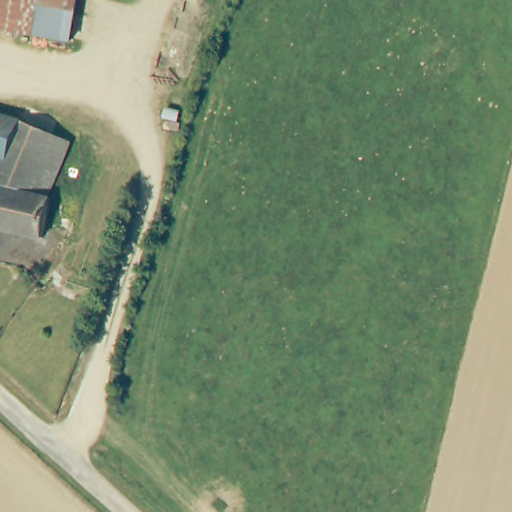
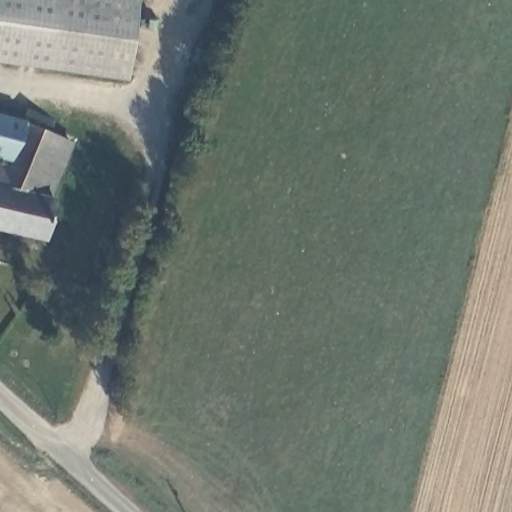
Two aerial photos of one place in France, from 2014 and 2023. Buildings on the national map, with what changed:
unchanged [(0,0),(83,0),(77,41),(0,30),(0,0)]
new [(83,0),(137,0),(125,80),(0,61),(0,30),(77,41),(83,0)]
unchanged [(44,237),(0,228),(0,164),(3,165),(6,153),(0,152),(0,110),(24,115),(68,135),(49,194),(56,195),(52,210),(46,232),(44,237)]

